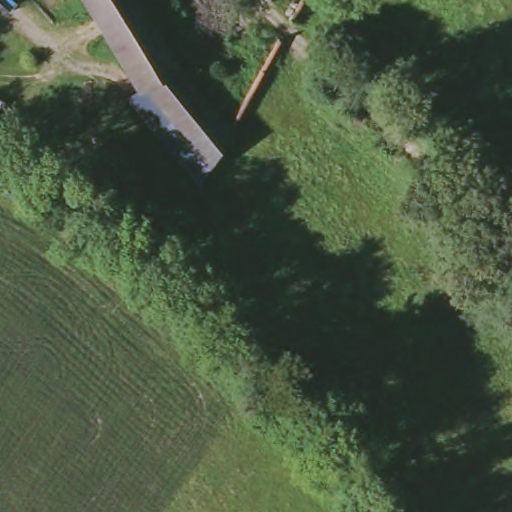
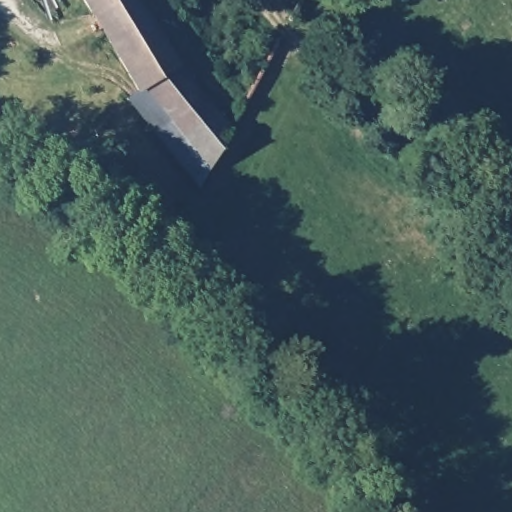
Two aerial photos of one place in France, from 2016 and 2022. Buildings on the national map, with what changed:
unchanged [(141,84),(136,86),(82,0),(137,0),(176,61),(141,84)]
unchanged [(211,105),(180,131),(141,84),(176,61),(211,105)]
unchanged [(141,84),(180,131),(211,105),(234,131),(202,189),(130,100),(141,92),(136,86),(141,84)]

